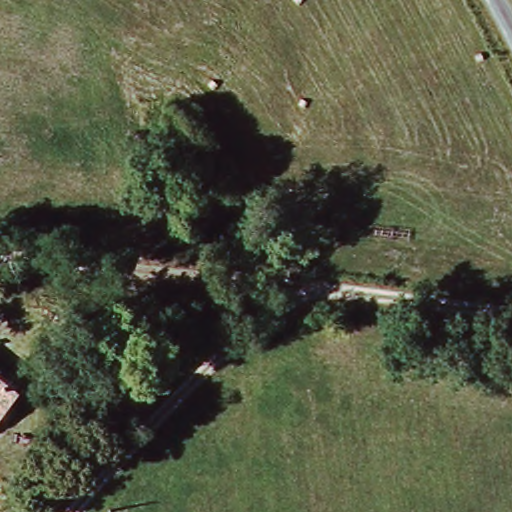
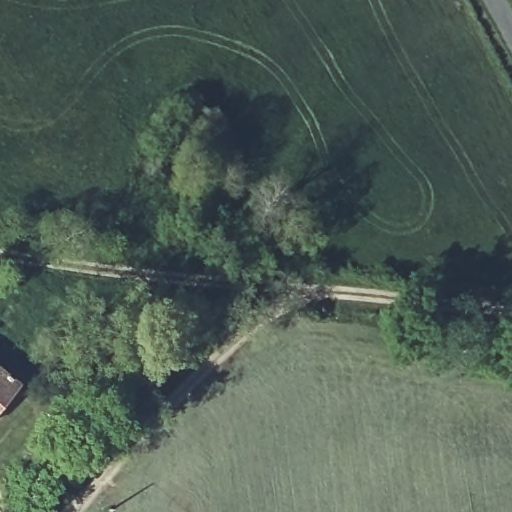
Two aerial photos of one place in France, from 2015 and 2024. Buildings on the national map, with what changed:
unchanged [(13,390),(0,405),(0,379),(13,390)]

